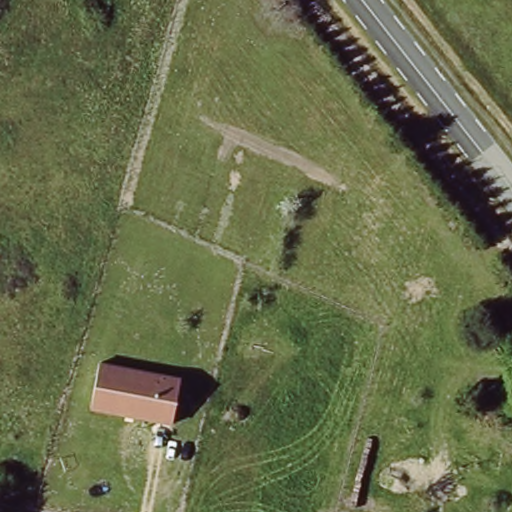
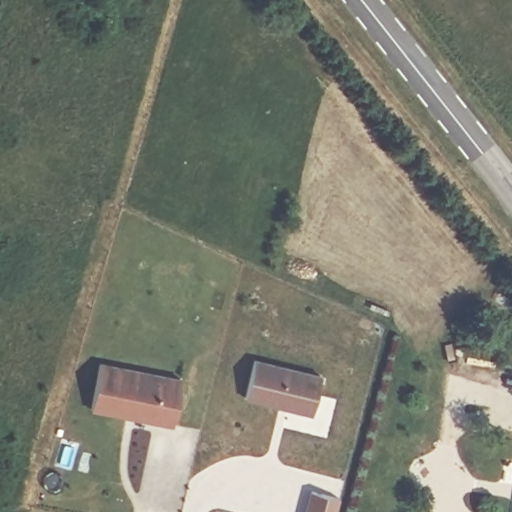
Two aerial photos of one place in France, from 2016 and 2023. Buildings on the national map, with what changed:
new [(253,357),(319,373),(310,411),(244,394),(253,357)]
unchanged [(182,377),(171,426),(91,410),(101,358),(182,377)]
new [(310,491),(337,497),(333,512),(304,512),(310,491)]

